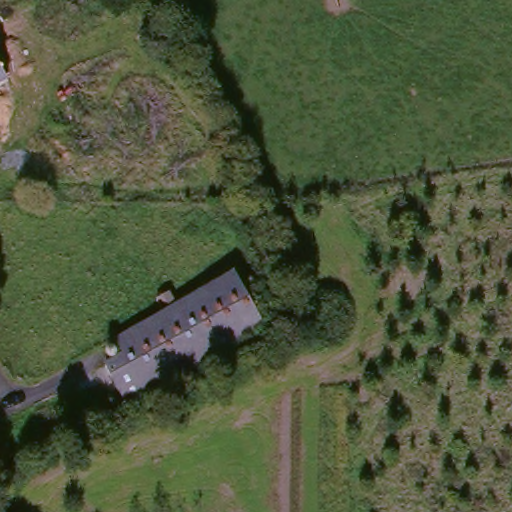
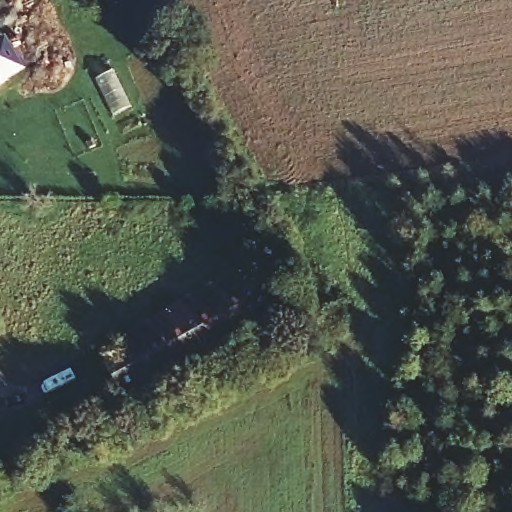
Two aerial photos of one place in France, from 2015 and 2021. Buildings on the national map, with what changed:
unchanged [(8,81),(0,85),(0,67),(8,81)]
unchanged [(235,271),(264,322),(126,400),(106,361),(123,353),(115,339),(235,271)]
unchanged [(8,470),(0,473),(0,447),(8,470)]

